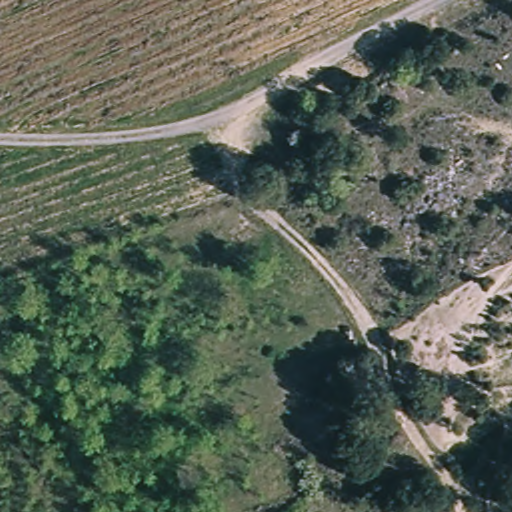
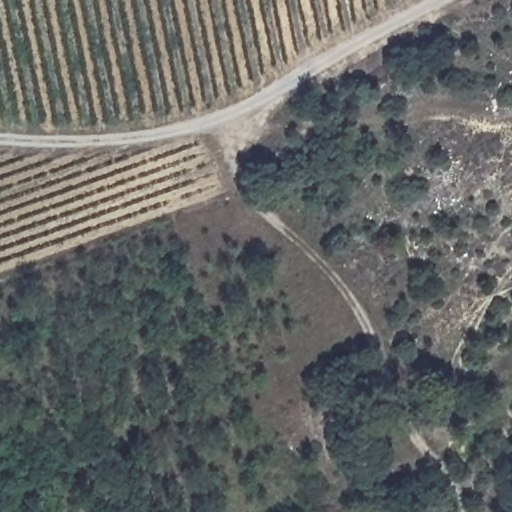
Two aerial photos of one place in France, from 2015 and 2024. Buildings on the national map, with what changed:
[]

